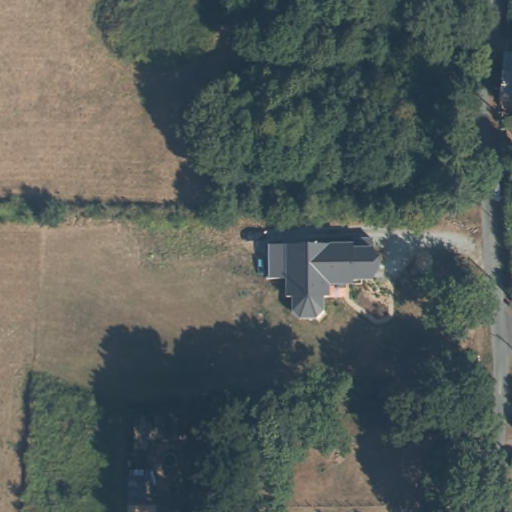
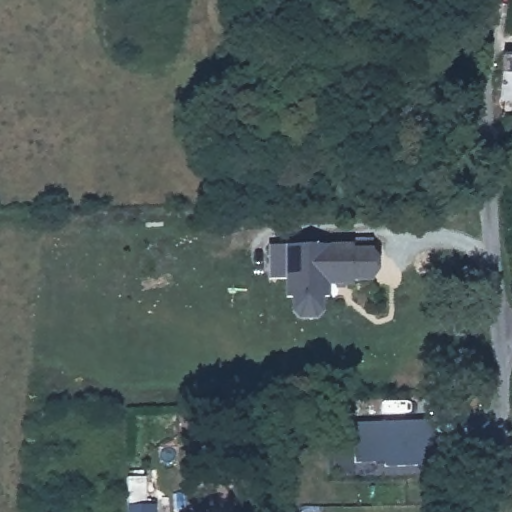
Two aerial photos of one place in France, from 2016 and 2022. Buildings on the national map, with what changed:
unchanged [(507,49),(512,49),(512,92),(503,92),(507,49)]
unchanged [(328,240),(329,246),(354,245),(355,251),(376,250),(377,283),(353,285),(352,290),(329,290),(329,300),(324,301),(324,315),(320,319),(300,320),(291,313),(291,298),(286,298),(285,247),(328,240)]
new [(355,423),(431,420),(433,465),(385,467),(385,464),(377,465),(377,463),(357,462),(355,423)]
demolished [(131,500),(130,476),(148,476),(149,503),(131,503),(131,500)]

